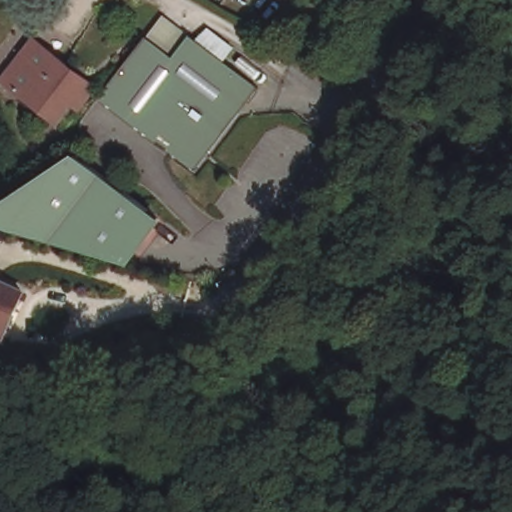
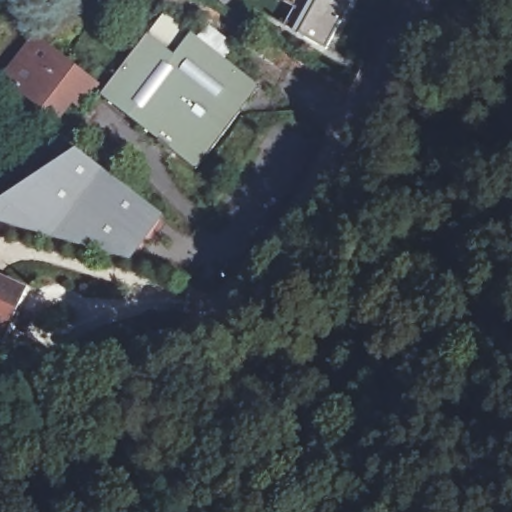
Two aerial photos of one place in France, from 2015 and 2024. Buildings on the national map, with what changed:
new [(327,47),(300,32),(310,14),(283,0),(352,0),(327,47)]
unchanged [(96,96),(143,39),(169,58),(187,37),(255,88),(189,167),(96,96)]
unchanged [(76,107),(69,102),(65,99),(50,118),(0,80),(31,41),(85,81),(92,87),(76,107)]
unchanged [(162,213),(144,236),(132,229),(110,256),(0,221),(0,202),(81,152),(162,213)]
unchanged [(0,282),(25,294),(2,340),(0,340),(0,282)]

